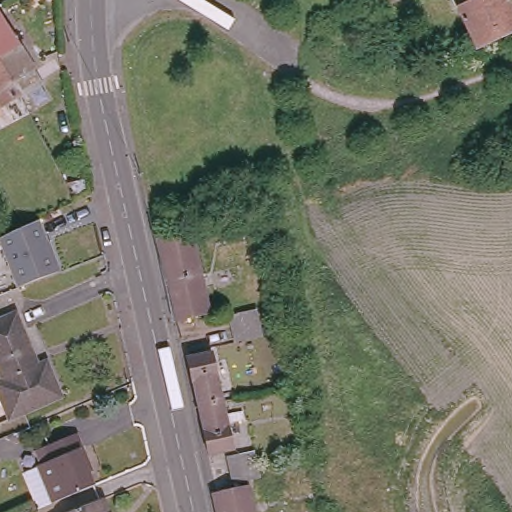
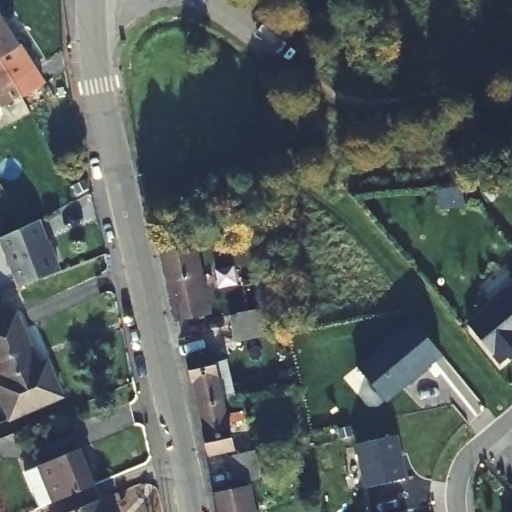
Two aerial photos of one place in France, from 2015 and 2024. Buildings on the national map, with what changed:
demolished [(376,0),(365,2),(365,0),(376,0)]
demolished [(512,34),(500,39),(478,48),(462,9),(469,5),(466,0),(508,0),(512,9),(512,34)]
unchanged [(37,74),(16,89),(9,74),(5,67),(0,60),(0,15),(37,74)]
unchanged [(5,67),(9,74),(16,89),(0,99),(0,60),(5,67)]
new [(460,207),(437,209),(435,190),(457,188),(460,207)]
unchanged [(0,246),(0,237),(42,220),(62,270),(16,287),(0,246)]
unchanged [(155,245),(157,240),(190,234),(192,234),(200,274),(164,283),(155,245)]
unchanged [(164,283),(200,274),(210,315),(172,323),(164,283)]
new [(512,289),(512,354),(500,363),(469,327),(512,289)]
unchanged [(14,312),(37,363),(44,360),(60,394),(8,418),(0,400),(0,317),(14,312)]
unchanged [(234,344),(227,319),(251,312),(258,339),(234,344)]
new [(383,407),(355,373),(410,325),(439,359),(383,407)]
unchanged [(195,408),(189,384),(187,385),(182,362),(205,357),(217,403),(195,408)]
unchanged [(217,403),(227,450),(204,456),(199,432),(200,432),(195,408),(217,403)]
unchanged [(47,512),(37,512),(24,480),(38,474),(32,459),(77,441),(91,474),(86,476),(93,492),(47,512)]
new [(364,493),(354,449),(394,441),(404,484),(364,493)]
unchanged [(1,454),(0,455),(0,452),(1,454)]
unchanged [(221,459),(247,452),(254,479),(228,486),(221,459)]
unchanged [(207,494),(245,486),(251,512),(210,512),(207,494)]
unchanged [(99,502),(103,512),(72,512),(99,502)]

